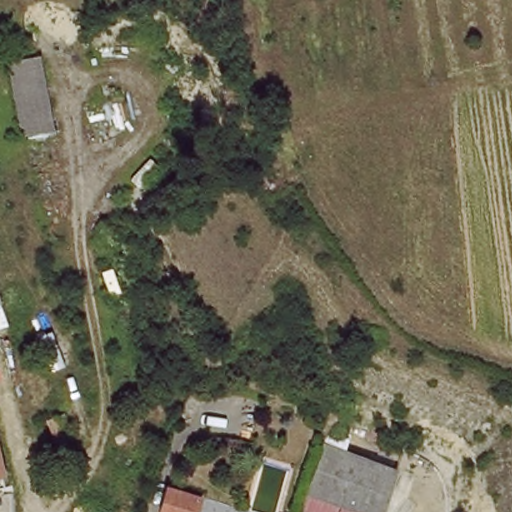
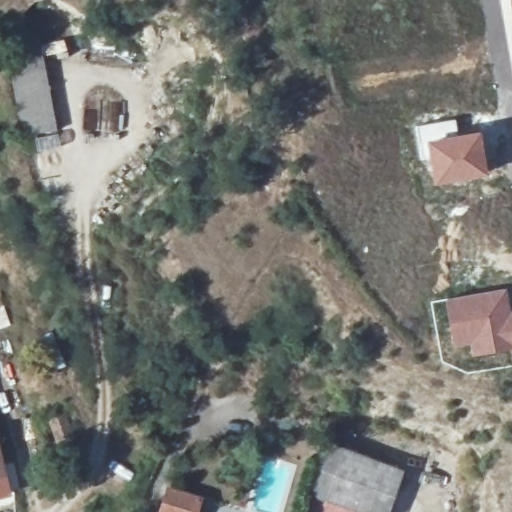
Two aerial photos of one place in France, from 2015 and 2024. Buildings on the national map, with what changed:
unchanged [(12,62),(41,57),(59,135),(20,141),(12,62)]
new [(455,119),(458,134),(480,130),(487,177),(433,187),(422,136),(420,137),(417,126),(455,119)]
new [(507,287),(510,310),(512,310),(512,349),(470,356),(468,345),(452,348),(443,298),(507,287)]
unchanged [(316,439),(353,455),(333,502),(301,490),(316,439)]
unchanged [(398,512),(358,512),(333,502),(353,455),(410,479),(398,512)]
unchanged [(0,479),(0,460),(4,478),(0,479)]
unchanged [(205,495),(203,512),(157,512),(165,485),(205,495)]

